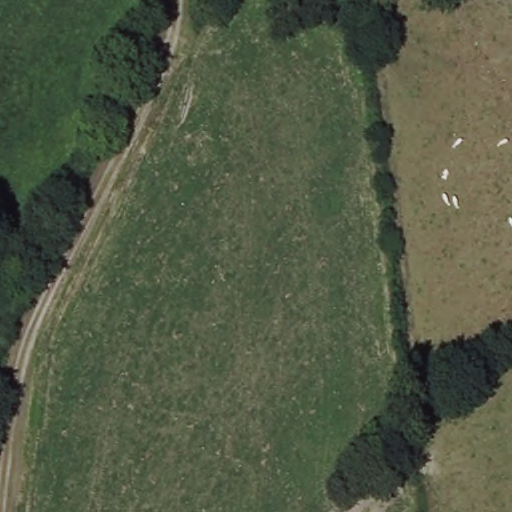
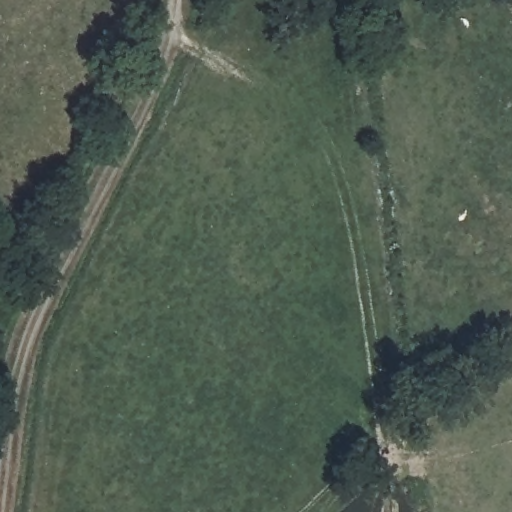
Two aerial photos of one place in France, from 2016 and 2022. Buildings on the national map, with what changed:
[]

